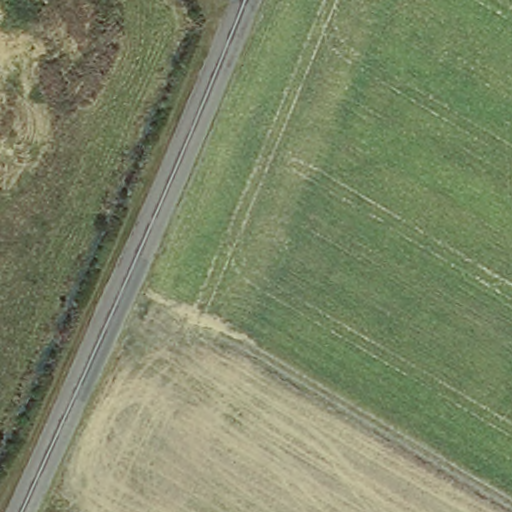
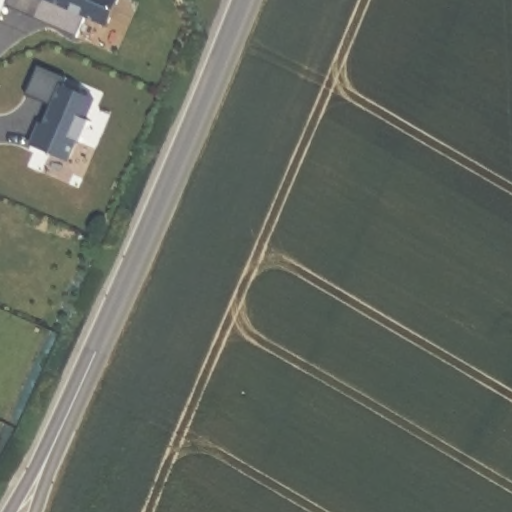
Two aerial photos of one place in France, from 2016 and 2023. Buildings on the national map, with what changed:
new [(11,0),(118,0),(121,1),(106,34),(85,25),(76,44),(72,42),(40,20),(37,26),(5,12),(11,0)]
new [(40,20),(72,41),(37,26),(40,20)]
new [(27,143),(40,114),(46,118),(55,99),(27,87),(40,63),(71,77),(67,84),(100,98),(92,117),(83,112),(75,134),(80,135),(71,162),(27,143)]

